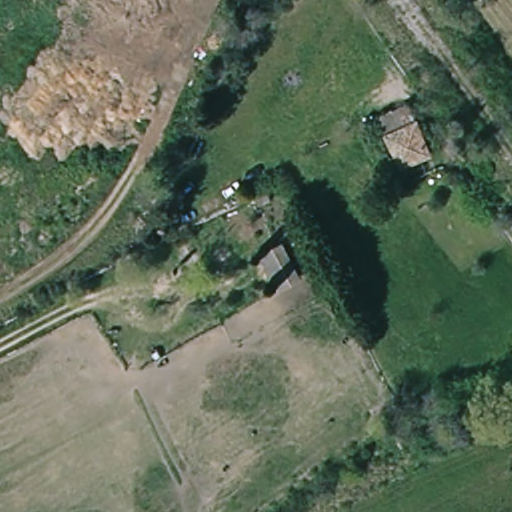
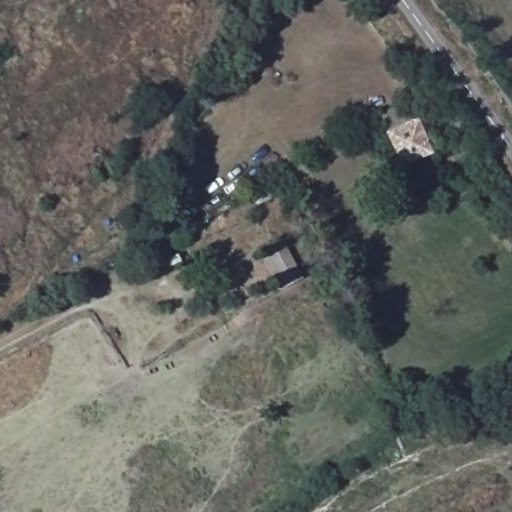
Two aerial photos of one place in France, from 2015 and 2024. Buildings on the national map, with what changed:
unchanged [(404,169),(388,137),(419,122),(434,154),(404,169)]
unchanged [(311,279),(287,293),(263,256),(291,242),(311,279)]

